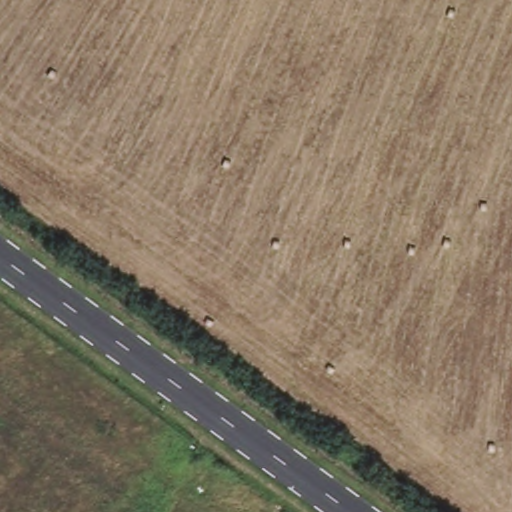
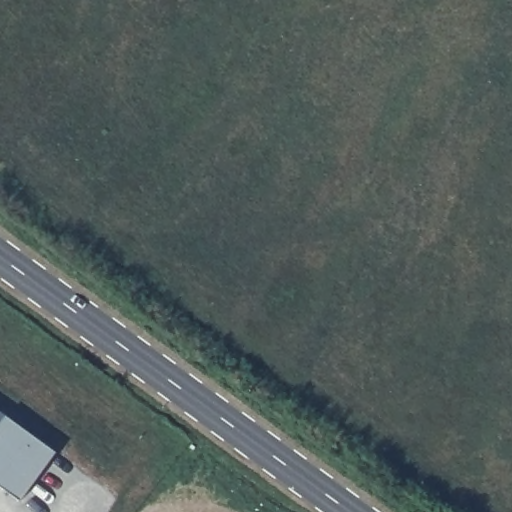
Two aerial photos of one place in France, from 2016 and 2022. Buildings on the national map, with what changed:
new [(55,452),(20,501),(0,487),(0,412),(55,452)]

